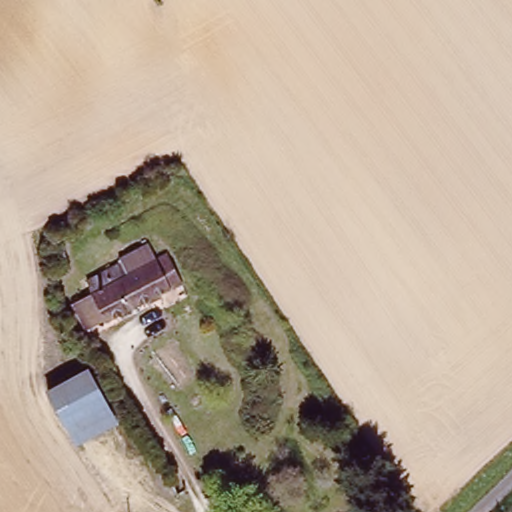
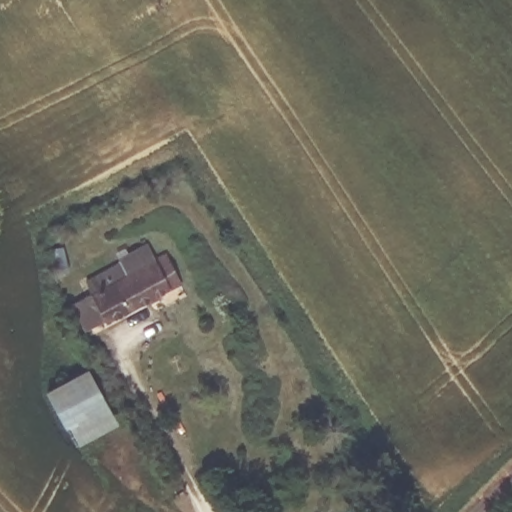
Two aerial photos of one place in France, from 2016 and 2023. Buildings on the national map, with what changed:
unchanged [(90,278),(125,260),(130,272),(140,267),(133,254),(153,243),(160,256),(170,250),(187,280),(112,320),(111,317),(91,327),(75,300),(95,288),(90,278)]
unchanged [(60,249),(67,268),(68,272),(55,277),(55,275),(47,254),(60,249)]
unchanged [(82,367),(112,421),(73,442),(43,389),(82,367)]

